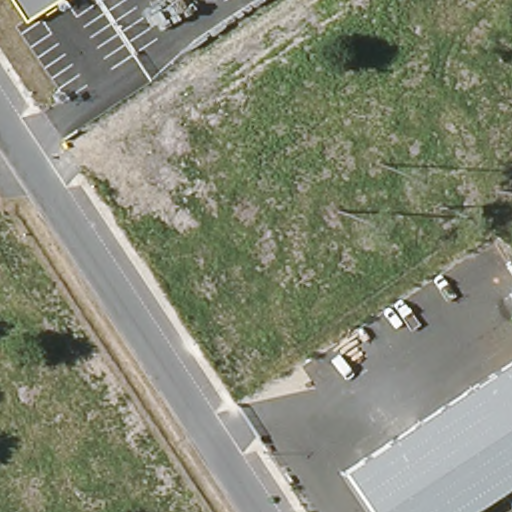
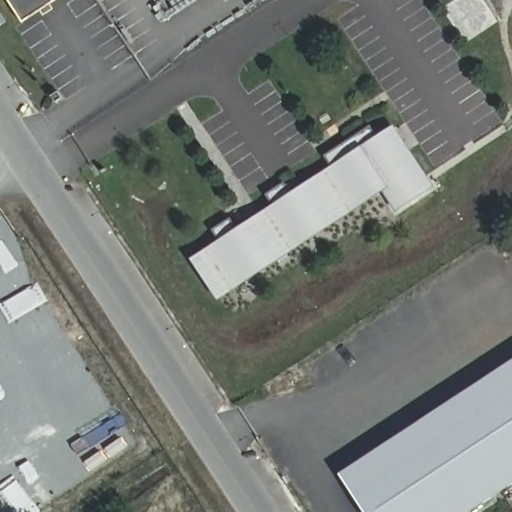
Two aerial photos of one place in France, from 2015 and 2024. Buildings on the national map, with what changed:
unchanged [(51,3),(56,9),(46,15),(41,10),(24,22),(9,0),(56,0),(51,3)]
new [(222,244),(213,230),(232,218),(240,232),(276,208),(266,195),(285,182),(294,196),(334,170),(325,156),(372,125),(381,139),(394,130),(431,185),(399,205),(383,182),(218,291),(197,260),(222,244)]
unchanged [(471,512),(368,512),(342,473),(512,360),(512,485),(471,512)]

